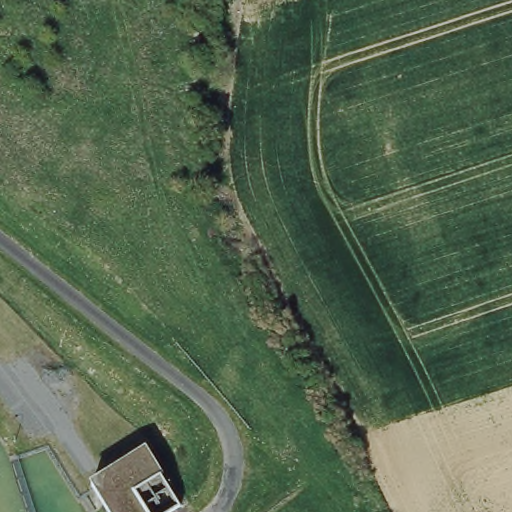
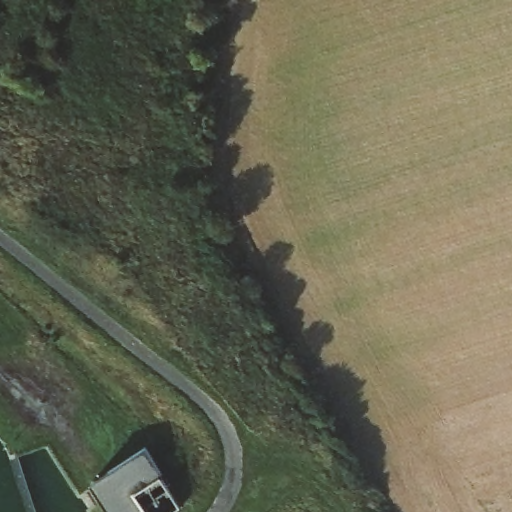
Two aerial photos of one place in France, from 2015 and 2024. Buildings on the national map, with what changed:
unchanged [(145,450),(179,510),(176,512),(106,512),(89,486),(145,450)]

